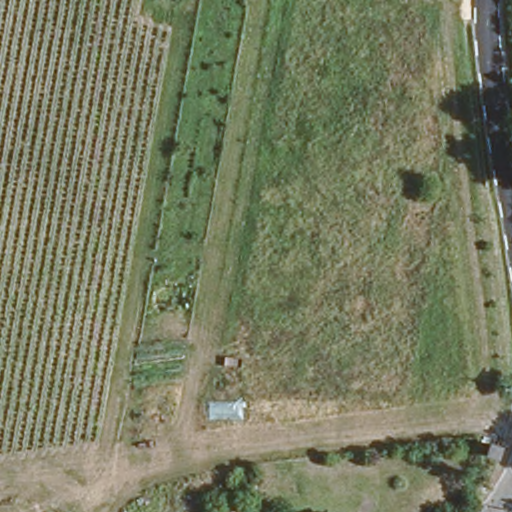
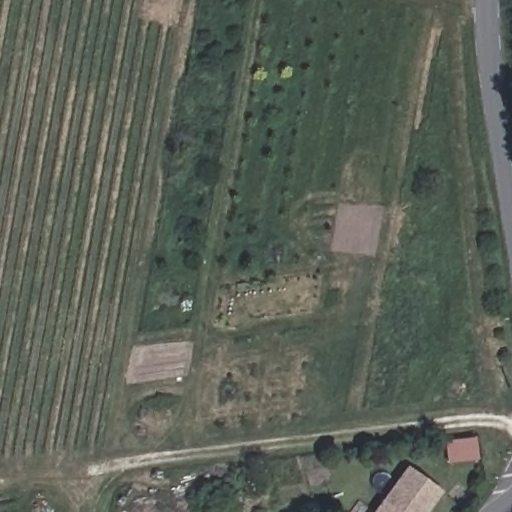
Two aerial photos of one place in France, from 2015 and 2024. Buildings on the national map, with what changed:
new [(427,512),(371,512),(404,466),(441,492),(427,512)]
unchanged [(232,501),(238,512),(225,512),(221,506),(232,501)]

